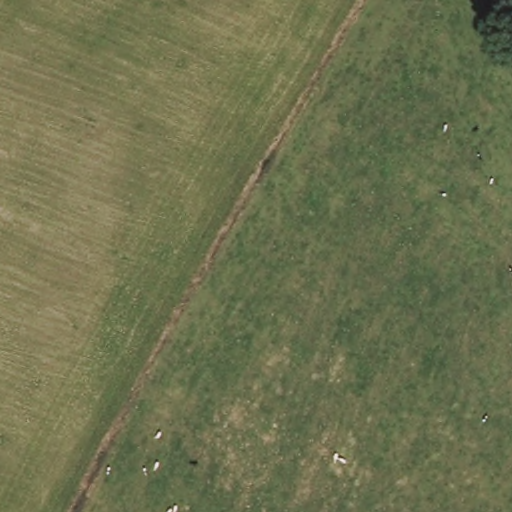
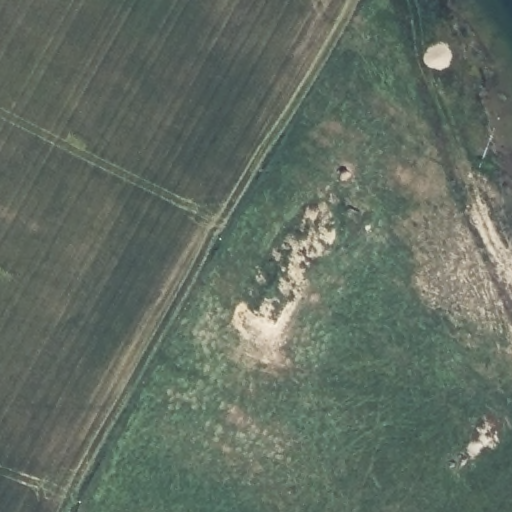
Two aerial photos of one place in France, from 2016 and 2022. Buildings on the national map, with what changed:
[]

